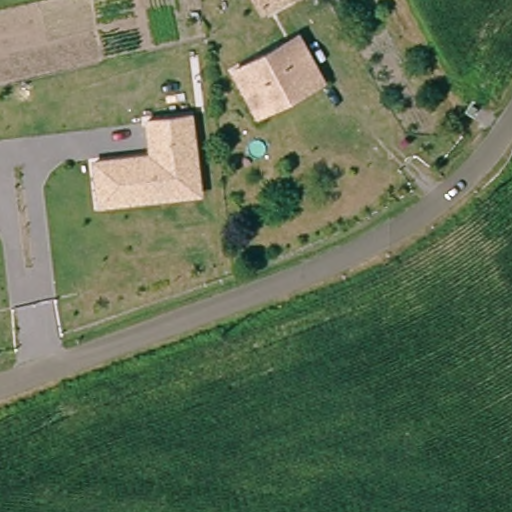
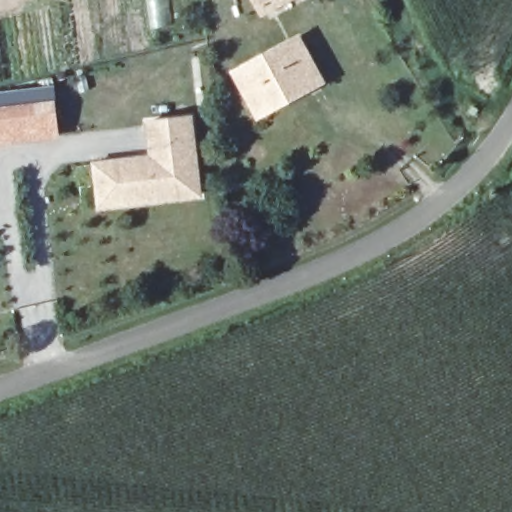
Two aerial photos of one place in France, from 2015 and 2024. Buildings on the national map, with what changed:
unchanged [(261,0),(284,0),(266,10),(261,0)]
unchanged [(256,109),(235,71),(298,36),(323,80),(290,98),(260,115),(256,109)]
new [(0,146),(0,107),(55,99),(59,138),(0,146)]
unchanged [(94,163),(109,161),(151,154),(146,120),(188,113),(198,176),(200,190),(197,190),(151,198),(101,205),(94,163)]

